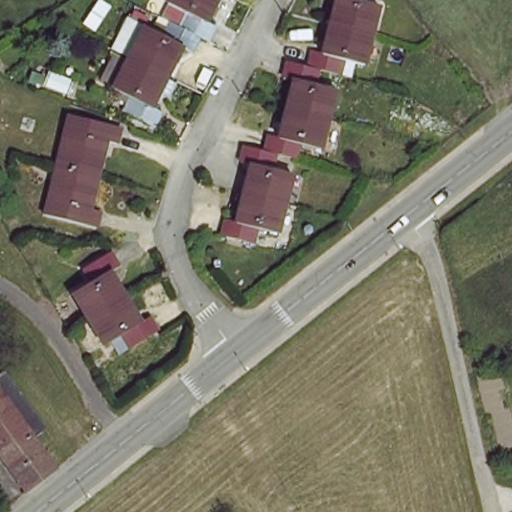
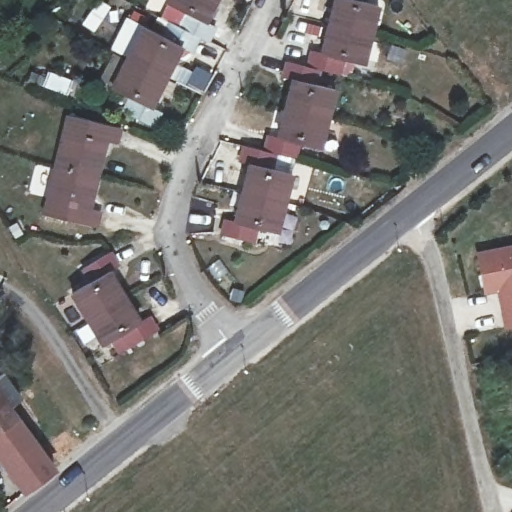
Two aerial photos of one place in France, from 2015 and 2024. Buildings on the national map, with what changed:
unchanged [(193,15),(174,6),(177,0),(222,0),(211,25),(221,30),(216,37),(212,45),(202,41),(184,32),(193,15)]
unchanged [(337,0),(377,0),(384,2),(376,36),(331,26),(337,0)]
unchanged [(202,41),(194,57),(185,52),(170,79),(137,62),(151,37),(163,44),(173,26),(184,32),(202,41)]
unchanged [(326,70),(308,66),(311,55),(313,50),(324,53),(331,26),(376,36),(369,65),(349,60),(346,75),(326,70)]
unchanged [(294,83),(283,80),(286,69),(288,61),(308,66),(326,70),(322,86),(339,90),(331,120),(287,110),(294,83)]
unchanged [(170,79),(152,113),(162,120),(159,126),(154,135),(128,120),(136,106),(119,96),(137,62),(170,79)]
unchanged [(47,82),(69,90),(65,104),(43,96),(47,82)]
unchanged [(268,136),(279,139),(287,110),(331,120),(324,149),(307,145),(302,161),(278,155),(264,152),(268,136)]
unchanged [(86,176),(60,170),(70,120),(121,131),(119,141),(118,146),(107,144),(99,180),(86,176)]
unchanged [(248,195),(254,170),(241,166),(243,155),(245,148),(264,152),(278,155),(274,171),(293,176),(286,204),(248,195)]
unchanged [(92,209),(104,212),(102,221),(100,230),(50,219),(60,170),(86,176),(99,180),(92,209)]
unchanged [(286,204),(278,235),(259,230),(255,244),(223,237),(224,230),(225,221),(240,225),(248,195),(286,204)]
new [(512,244),(512,329),(506,330),(499,292),(484,295),(476,251),(512,244)]
unchanged [(77,292),(98,280),(90,267),(116,252),(121,260),(125,266),(114,274),(130,297),(95,320),(77,292)]
unchanged [(146,322),(154,317),(159,326),(162,330),(136,348),(125,333),(110,343),(95,320),(130,297),(146,322)]
unchanged [(10,381),(41,425),(45,431),(35,439),(56,466),(58,470),(37,486),(34,489),(29,493),(0,455),(0,382),(8,377),(10,381)]

